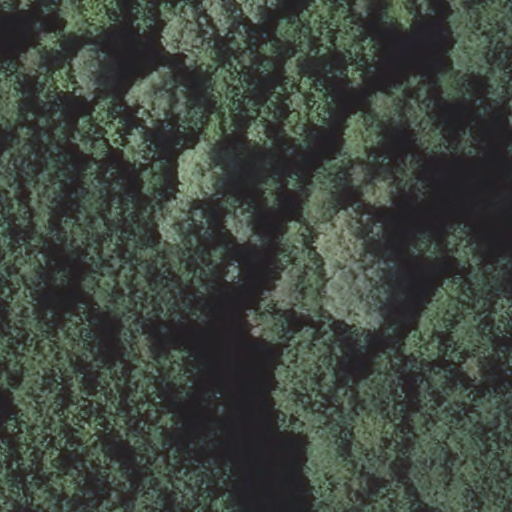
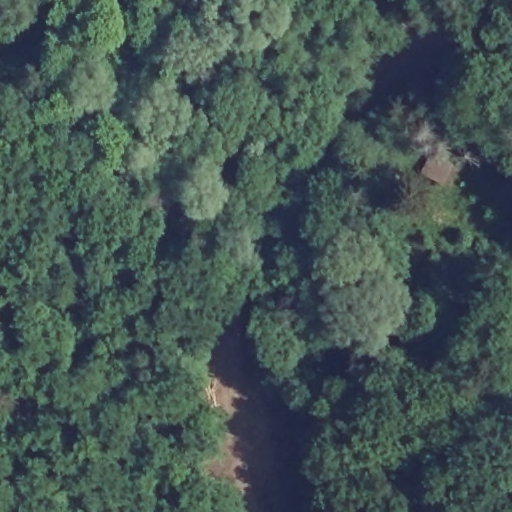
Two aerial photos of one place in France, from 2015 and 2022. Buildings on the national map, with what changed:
unchanged [(406,216),(386,200),(416,176),(437,186),(406,216)]

